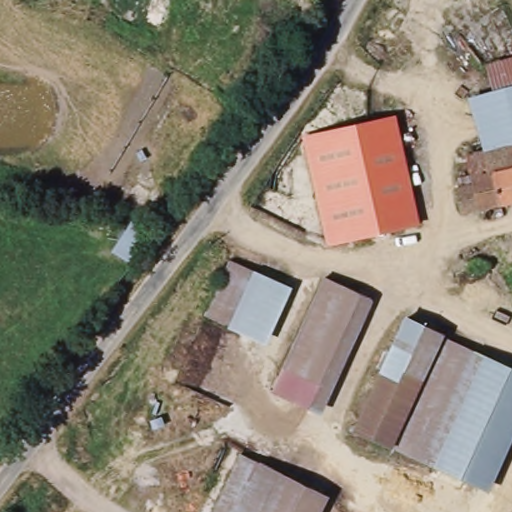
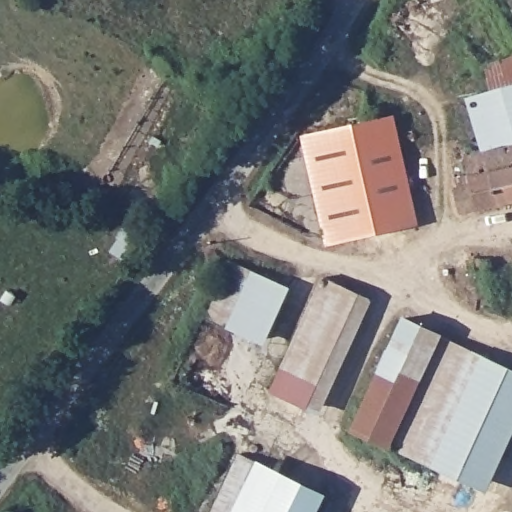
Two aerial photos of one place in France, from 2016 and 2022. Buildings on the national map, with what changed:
unchanged [(495,94),(486,66),(512,58),(512,89),(495,94)]
unchanged [(487,149),(472,99),(490,95),(495,94),(512,89),(512,144),(487,149)]
unchanged [(436,220),(328,244),(305,136),(412,113),(436,220)]
unchanged [(462,214),(456,189),(460,187),(458,179),(471,175),(466,154),(487,149),(512,144),(512,203),(462,214)]
unchanged [(108,252),(127,219),(155,232),(134,264),(108,252)]
unchanged [(490,265),(489,268),(486,269),(470,272),(468,260),(480,258),(490,264),(490,265)]
unchanged [(234,328),(206,315),(231,260),(258,273),(234,328)]
unchanged [(315,414),(278,397),(330,283),(366,299),(315,414)]
unchanged [(393,448),(356,431),(408,318),(445,334),(393,448)]
unchanged [(438,469),(395,448),(445,338),(488,358),(438,469)]
unchanged [(488,358),(512,368),(512,404),(475,485),(438,469),(488,358)]
unchanged [(321,512),(214,512),(241,454),(329,496),(321,512)]

